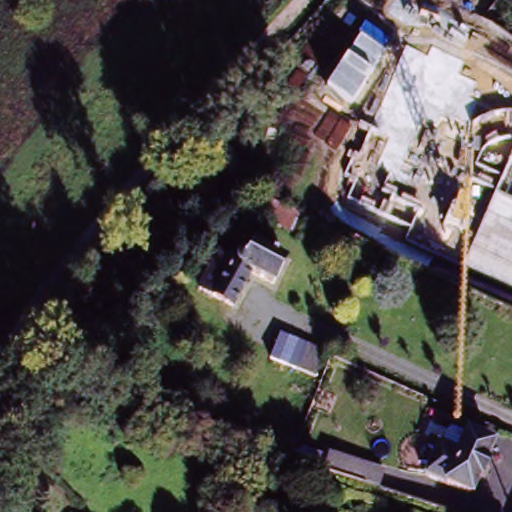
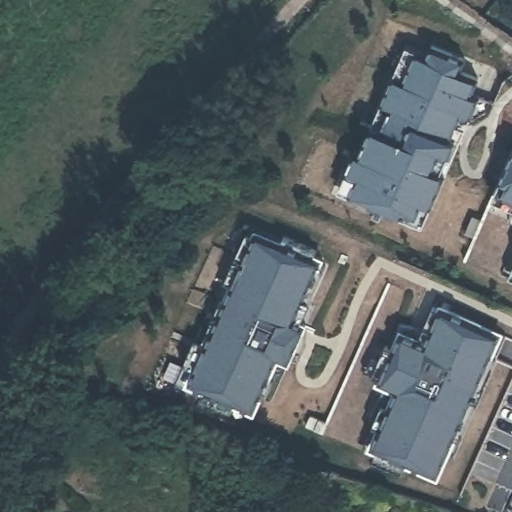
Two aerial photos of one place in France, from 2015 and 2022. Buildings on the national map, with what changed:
demolished [(338,37),(331,45),(324,53),(316,46),(322,39),(330,30),(338,37)]
new [(397,217),(351,197),(338,192),(347,169),(353,159),(371,126),(407,47),(420,53),(430,58),(433,49),(462,62),(458,75),(476,81),(467,97),(477,101),(452,143),(437,176),(443,177),(430,207),(424,229),(397,217)]
demolished [(483,125),(504,137),(502,140),(512,146),(512,178),(510,182),(512,183),(512,199),(508,206),(490,196),(489,199),(470,187),(472,185),(464,180),(452,172),(468,146),(472,145),(478,132),(483,125)]
new [(494,200),(502,182),(512,158),(512,209),(494,200)]
new [(465,260),(474,239),(465,235),(473,218),(482,222),(494,200),(512,209),(512,273),(510,278),(465,260)]
demolished [(298,216),(304,219),(297,234),(274,222),(281,207),(298,216)]
new [(234,407),(232,411),(205,397),(206,395),(186,385),(178,383),(185,363),(198,338),(204,342),(231,283),(225,280),(245,232),(249,222),(255,226),(282,239),(284,237),(316,251),(315,254),(324,259),(319,264),(326,268),(301,321),(307,325),(290,365),(280,360),(256,415),(234,407)]
demolished [(361,225),(375,231),(442,261),(437,272),(435,272),(356,237),(361,225)]
demolished [(236,306),(205,291),(222,256),(249,268),(259,248),(287,262),(276,285),(252,273),(236,306)]
new [(510,278),(512,273),(512,279),(510,278)]
new [(401,321),(424,330),(435,306),(437,306),(439,302),(505,332),(494,358),(497,360),(461,442),(457,441),(439,482),(405,468),(404,471),(376,457),(378,454),(367,449),(377,428),(373,426),(377,417),(372,417),(385,390),(375,383),(377,380),(371,377),(373,373),(367,372),(374,358),(380,361),(386,346),(401,321)]
demolished [(316,378),(297,370),(307,347),(325,356),(316,378)]
demolished [(127,362),(150,368),(146,381),(123,373),(127,362)]
demolished [(471,496),(426,477),(440,445),(443,446),(451,427),(492,445),(471,496)]
demolished [(354,463),(393,477),(389,488),(350,476),(354,463)]

